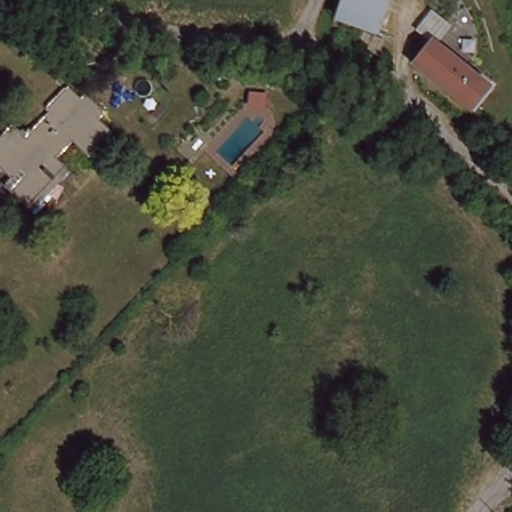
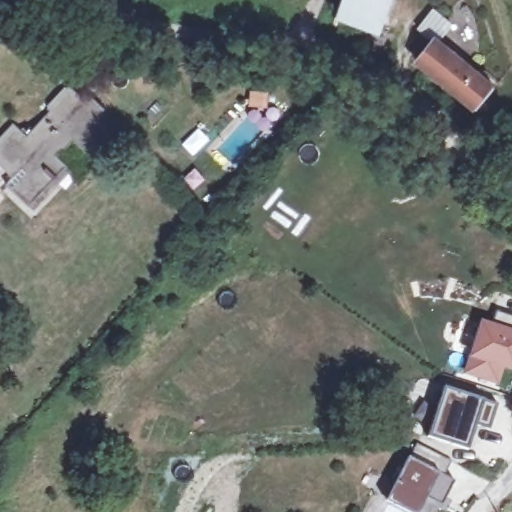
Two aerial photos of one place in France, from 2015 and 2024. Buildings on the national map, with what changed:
unchanged [(334,23),(342,0),(385,0),(373,36),(334,23)]
unchanged [(424,79),(415,72),(419,66),(415,63),(432,38),(497,90),(479,111),(429,73),(424,79)]
unchanged [(3,189),(10,180),(0,170),(0,151),(11,140),(21,150),(52,119),(43,110),(61,92),(77,107),(85,98),(103,114),(94,124),(108,136),(89,155),(75,141),(56,161),(70,175),(30,216),(3,189)]
unchanged [(216,170),(228,181),(217,192),(206,180),(216,170)]
new [(467,357),(480,320),(491,323),(496,311),(512,317),(512,373),(503,370),(498,386),(463,375),(467,357)]
new [(475,426),(467,451),(427,437),(444,386),(484,398),(498,403),(489,430),(475,426)]
new [(444,512),(424,501),(419,512),(407,512),(386,501),(409,458),(416,445),(451,462),(444,475),(454,480),(446,498),(451,500),(445,512),(444,512)]

